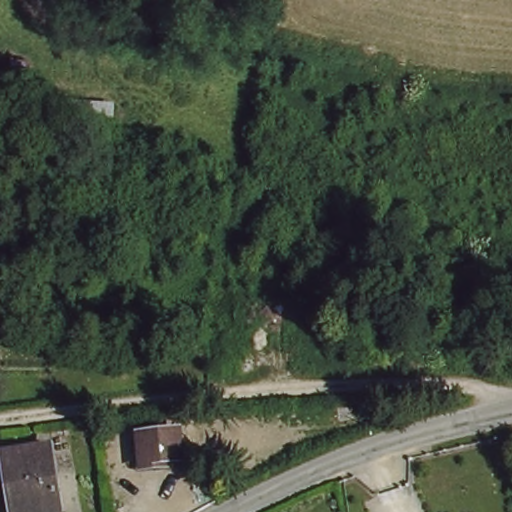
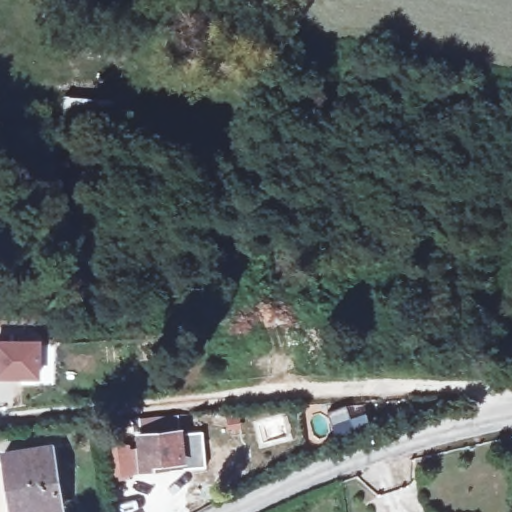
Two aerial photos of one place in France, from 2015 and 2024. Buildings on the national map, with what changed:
unchanged [(48,122),(50,100),(117,107),(116,134),(48,122)]
new [(37,342),(36,382),(0,382),(0,342),(37,342)]
unchanged [(179,460),(160,461),(161,466),(138,467),(136,437),(177,433),(179,460)]
unchanged [(30,512),(16,512),(7,455),(56,448),(62,507),(30,512)]

